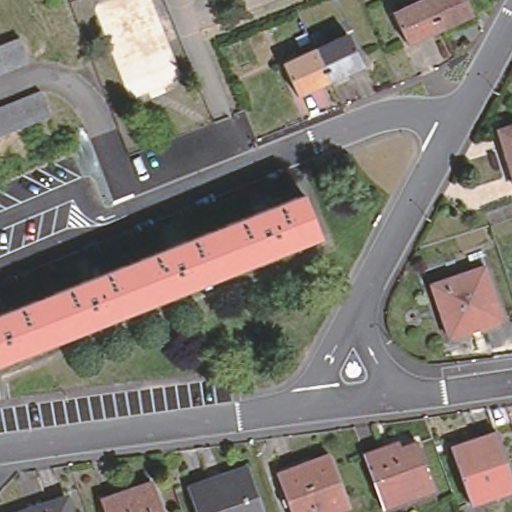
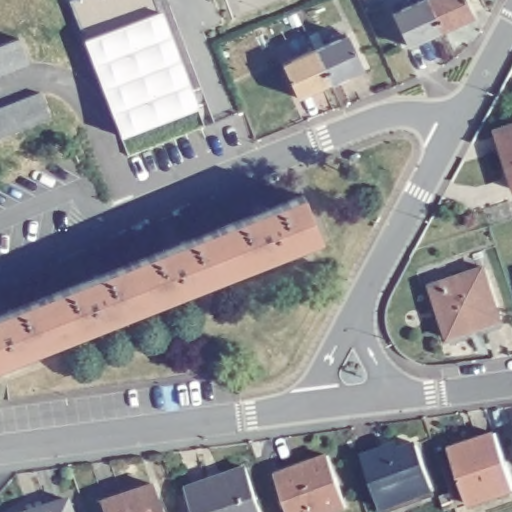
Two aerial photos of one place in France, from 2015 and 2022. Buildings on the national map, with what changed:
unchanged [(410,0),(423,0),(436,28),(404,43),(388,10),(410,0)]
unchanged [(467,13),(436,28),(423,0),(461,0),(467,13)]
new [(169,14),(205,123),(116,152),(70,47),(169,14)]
unchanged [(342,32),(358,65),(325,80),(310,47),(342,32)]
unchanged [(15,34),(25,61),(12,67),(0,71),(0,40),(2,39),(15,34)]
unchanged [(325,80),(294,95),(279,62),(310,47),(325,80)]
unchanged [(23,94),(36,89),(45,113),(32,118),(19,124),(6,129),(0,131),(0,103),(10,99),(23,94)]
unchanged [(512,123),(512,171),(498,128),(512,123)]
unchanged [(317,234),(0,358),(0,308),(300,190),(317,234)]
unchanged [(500,317),(449,336),(432,284),(484,266),(500,317)]
unchanged [(465,501),(446,446),(490,430),(510,485),(465,501)]
unchanged [(377,505),(359,454),(376,447),(377,451),(379,452),(412,440),(429,487),(377,505)]
unchanged [(318,512),(287,512),(272,470),(324,453),(342,504),(318,512)]
unchanged [(241,467),(256,512),(192,512),(182,487),(241,467)]
unchanged [(103,512),(97,498),(147,481),(158,512),(103,512)]
unchanged [(0,510),(56,491),(63,512),(0,512),(0,511),(0,510)]

